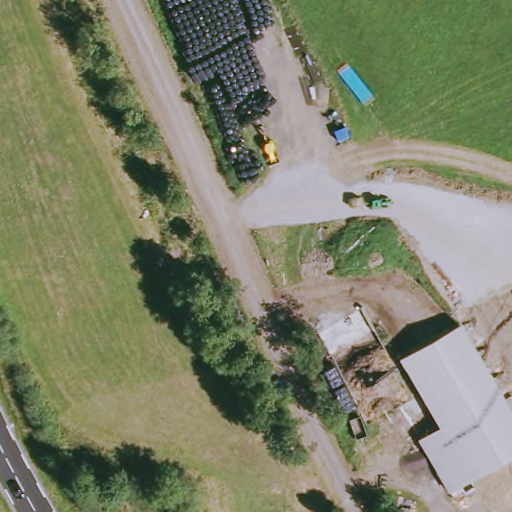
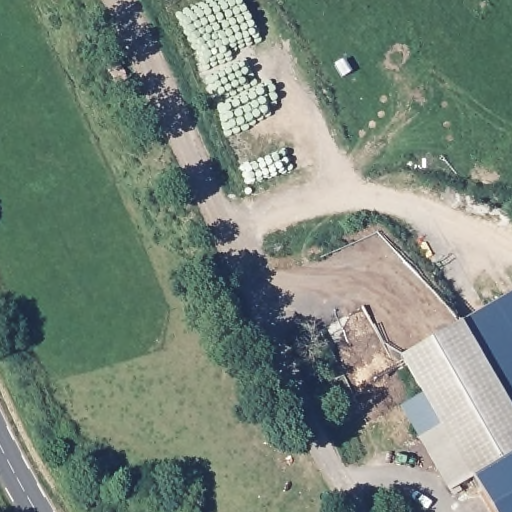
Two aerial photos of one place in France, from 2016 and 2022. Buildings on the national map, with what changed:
new [(462,321),(512,292),(512,412),(462,321)]
unchanged [(512,412),(512,453),(450,489),(419,436),(442,423),(402,354),(462,321),(512,412)]
new [(492,512),(471,476),(512,453),(512,512),(492,512)]

